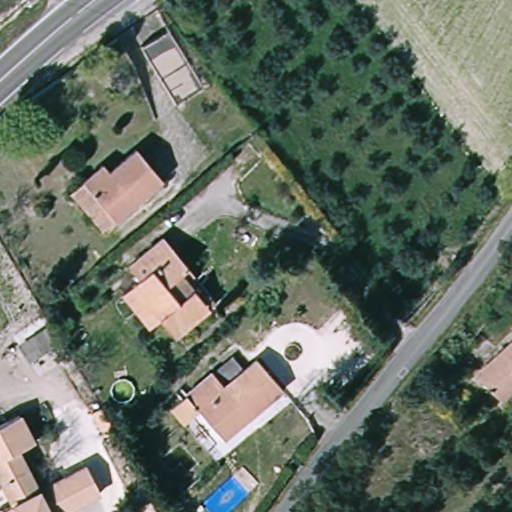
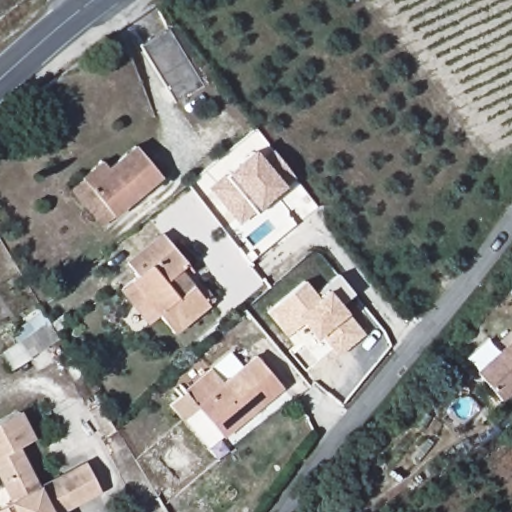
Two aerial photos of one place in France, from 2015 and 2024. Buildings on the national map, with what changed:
unchanged [(179,103),(141,49),(164,33),(201,87),(179,103)]
new [(254,212),(239,224),(208,187),(226,173),(254,150),(261,158),(271,150),(292,177),(283,183),(285,186),(258,209),(254,212)]
unchanged [(114,173),(141,155),(162,185),(111,220),(85,181),(109,165),(114,173)]
unchanged [(173,338),(136,287),(142,283),(131,269),(169,240),(190,268),(182,274),(209,312),(173,338)]
new [(314,292),(338,275),(354,294),(340,303),(349,315),(365,333),(337,355),(323,335),(315,340),(304,325),(287,336),(266,311),(304,280),(314,292)]
unchanged [(28,334),(51,321),(61,337),(38,352),(28,334)]
unchanged [(483,379),(512,351),(512,403),(507,407),(483,379)]
unchanged [(226,387),(263,361),(289,398),(227,442),(193,393),(218,375),(226,387)]
unchanged [(74,512),(6,512),(4,509),(19,501),(0,464),(0,427),(25,416),(39,443),(24,450),(45,491),(87,472),(100,499),(74,512)]

